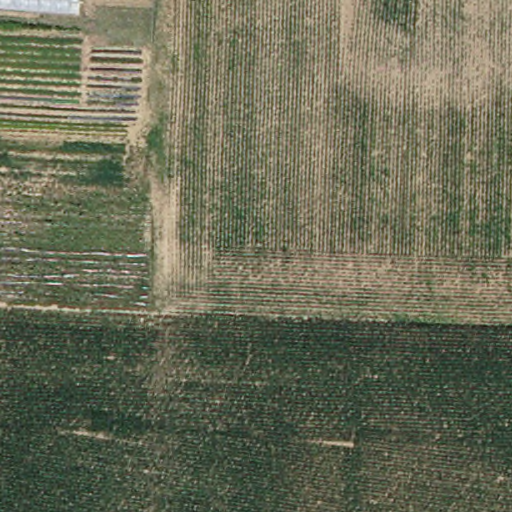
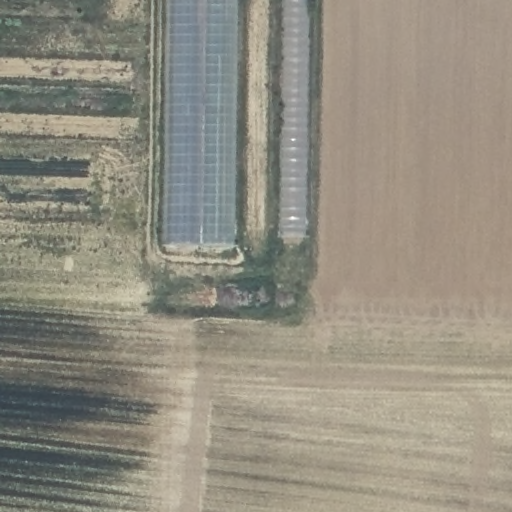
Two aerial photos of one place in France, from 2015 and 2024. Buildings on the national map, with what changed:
new [(78,13),(0,9),(0,0),(78,0),(78,13)]
new [(304,238),(170,231),(173,0),(308,0),(304,238)]

